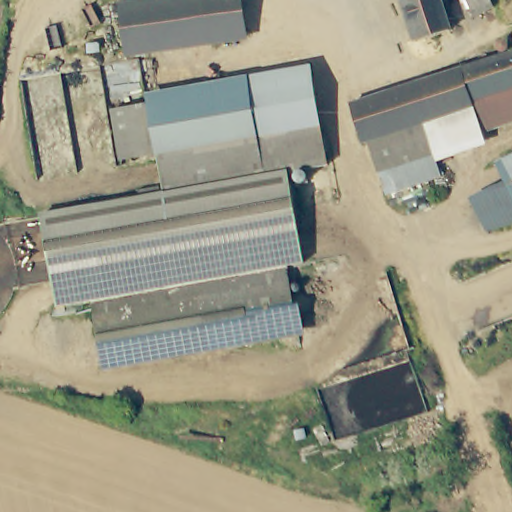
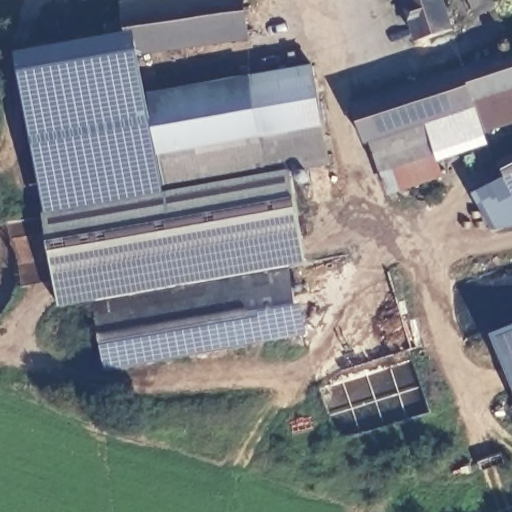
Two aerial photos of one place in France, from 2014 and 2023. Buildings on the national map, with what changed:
unchanged [(122,1),(130,0),(245,0),(250,39),(126,55),(122,1)]
unchanged [(415,43),(402,0),(442,0),(452,31),(415,43)]
unchanged [(495,10),(473,19),(466,0),(491,0),(493,5),(495,10)]
new [(257,86),(151,106),(159,153),(165,195),(47,217),(16,54),(125,35),(126,55),(139,54),(146,94),(255,78),(257,86)]
unchanged [(477,109),(424,126),(367,144),(365,145),(352,105),(512,52),(512,124),(485,133),(477,109)]
unchanged [(257,86),(255,78),(312,67),(328,167),(290,175),(305,266),(288,269),(300,330),(105,364),(95,303),(59,309),(55,288),(42,218),(165,195),(159,153),(151,106),(257,86)]
new [(488,144),(439,161),(443,178),(386,195),(370,143),(424,126),(477,109),(485,133),(488,144)]
unchanged [(512,154),(512,189),(497,161),(512,154)]
new [(512,389),(492,338),(512,330),(512,389)]

